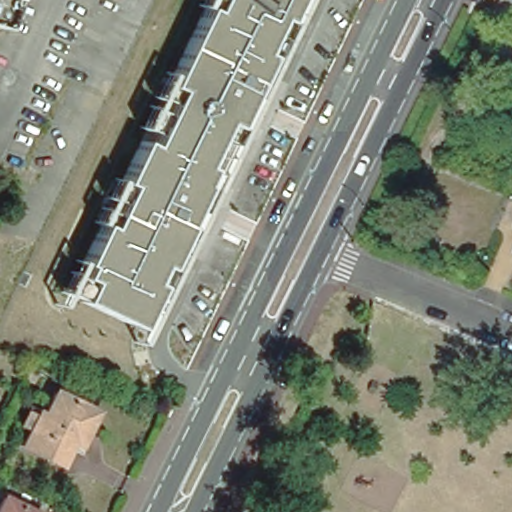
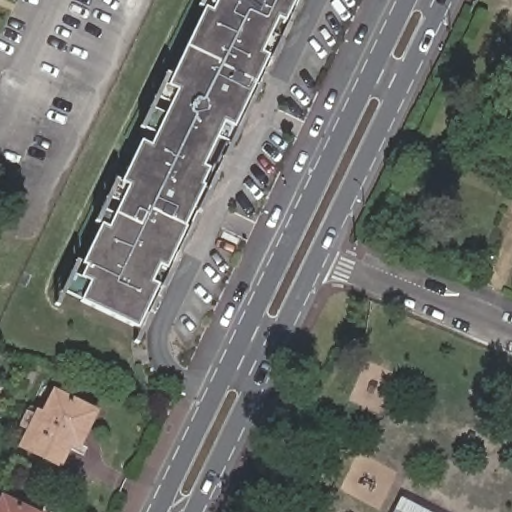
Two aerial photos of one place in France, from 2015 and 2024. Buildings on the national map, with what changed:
unchanged [(160,264),(151,283),(157,286),(138,328),(59,291),(68,272),(78,276),(101,226),(111,228),(132,185),(123,181),(142,141),(154,145),(180,89),(170,84),(210,0),(296,0),(170,268),(160,264)]
unchanged [(82,444),(73,440),(62,462),(26,445),(33,431),(23,426),(31,411),(40,416),(42,412),(47,415),(58,392),(97,412),(82,444)]
unchanged [(30,512),(0,512),(0,499),(0,498),(30,512)]
new [(401,498),(428,512),(394,512),(401,498)]

